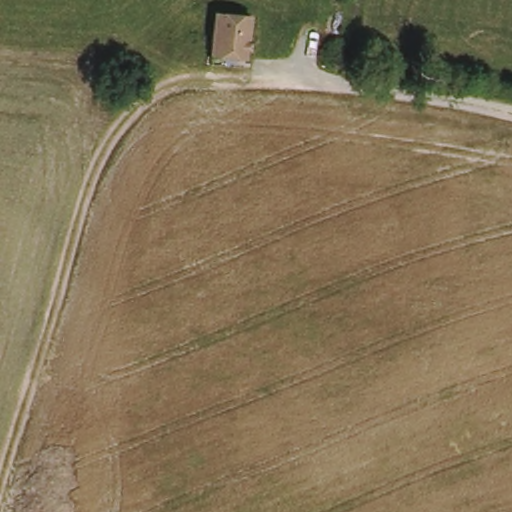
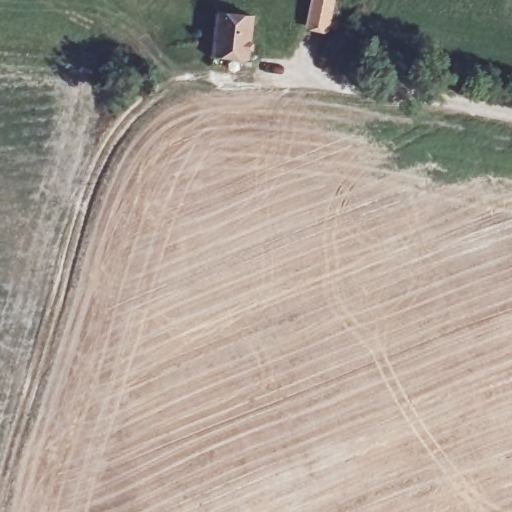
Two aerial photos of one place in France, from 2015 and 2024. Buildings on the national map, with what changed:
new [(327,34),(305,29),(310,0),(334,0),(327,34)]
unchanged [(224,14),(252,17),(246,55),(219,51),(224,14)]

